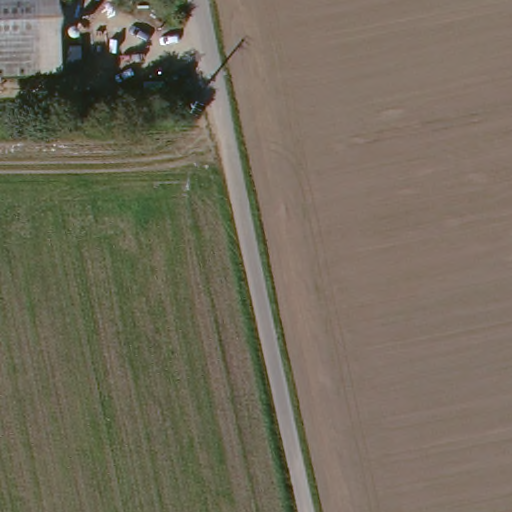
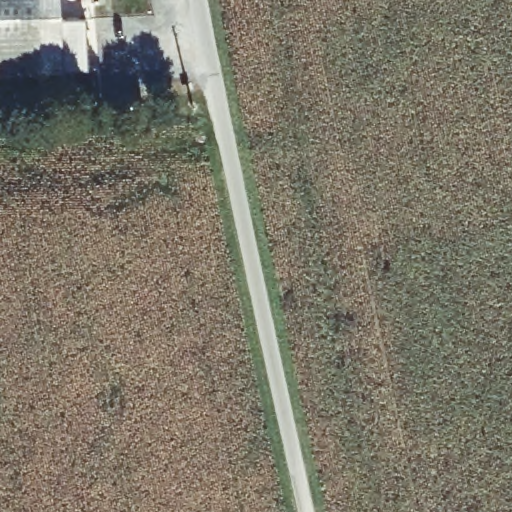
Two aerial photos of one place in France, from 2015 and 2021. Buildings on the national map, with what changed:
unchanged [(60,49),(61,74),(37,74),(0,75),(0,0),(58,0),(60,49)]
unchanged [(142,96),(112,97),(112,78),(142,78),(142,96)]

